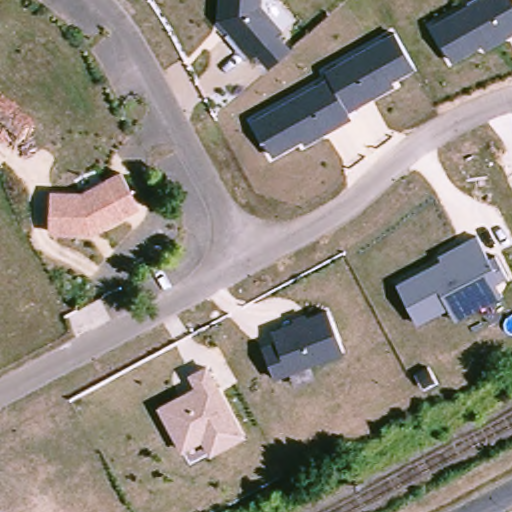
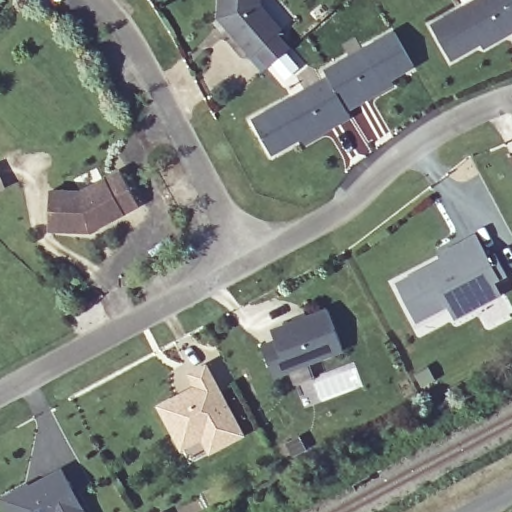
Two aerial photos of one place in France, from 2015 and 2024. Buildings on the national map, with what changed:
unchanged [(263,2),(284,29),(278,34),(290,49),(265,68),(255,54),(249,58),(216,21),(218,0),(264,0),(263,2)]
unchanged [(476,0),(512,0),(512,27),(449,61),(430,26),(476,0)]
unchanged [(394,30),(415,68),(393,80),(396,86),(348,112),(327,76),(323,69),(394,30)]
unchanged [(351,117),(305,144),(302,139),(272,157),(251,119),(327,76),(348,112),(351,117)]
unchanged [(84,188),(119,168),(141,208),(88,234),(47,233),(48,188),(84,188)]
unchanged [(487,257),(494,253),(507,276),(497,281),(503,294),(454,320),(448,308),(417,324),(396,282),(439,258),(436,254),(476,233),(487,257)]
unchanged [(274,338),(271,328),(292,320),(289,314),(306,307),(309,314),(329,307),(345,350),(272,378),(260,344),(274,338)]
unchanged [(185,373),(206,362),(245,436),(207,456),(200,441),(179,451),(156,405),(192,387),(185,373)]
new [(0,496),(27,483),(29,486),(62,468),(86,512),(8,512),(0,498),(0,496)]

